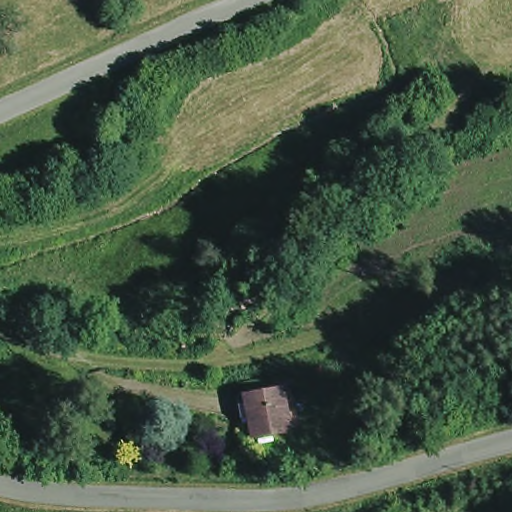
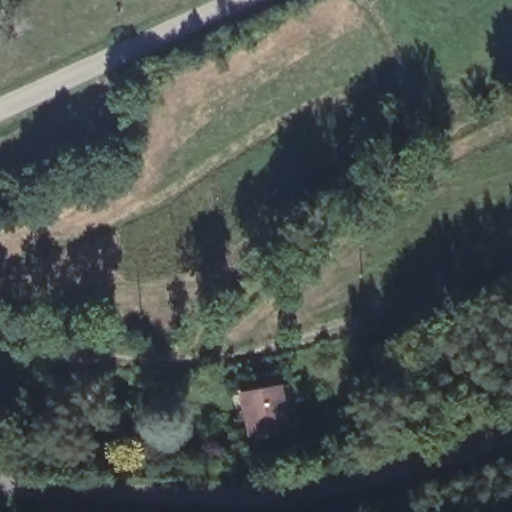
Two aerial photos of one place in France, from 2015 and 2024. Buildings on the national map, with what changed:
unchanged [(243,393),(263,391),(262,384),(281,383),(288,425),(249,431),(243,393)]

